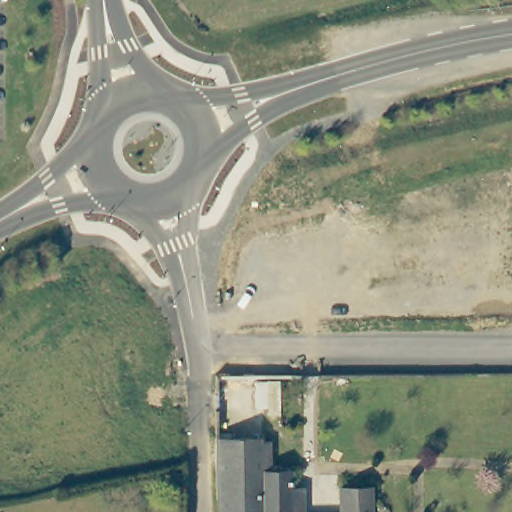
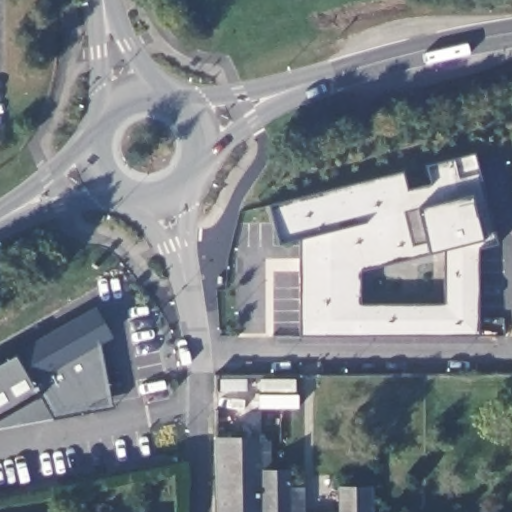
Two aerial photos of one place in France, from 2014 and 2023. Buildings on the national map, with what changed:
new [(498,244),(478,249),(479,334),(302,336),(303,238),(281,242),(270,205),(403,170),(409,189),(430,183),(426,166),(475,154),(498,244)]
new [(55,421),(41,397),(0,421),(0,364),(96,310),(101,330),(102,340),(113,397),(115,409),(96,412),(55,421)]
new [(55,421),(0,431),(0,421),(41,397),(55,421)]
unchanged [(258,438),(258,443),(266,443),(267,474),(288,473),(289,492),(301,491),(300,512),(214,512),(215,437),(258,438)]
unchanged [(372,490),(372,512),(341,512),(341,490),(372,490)]

